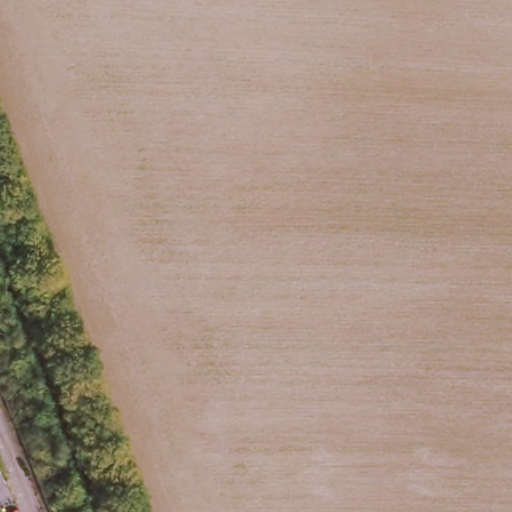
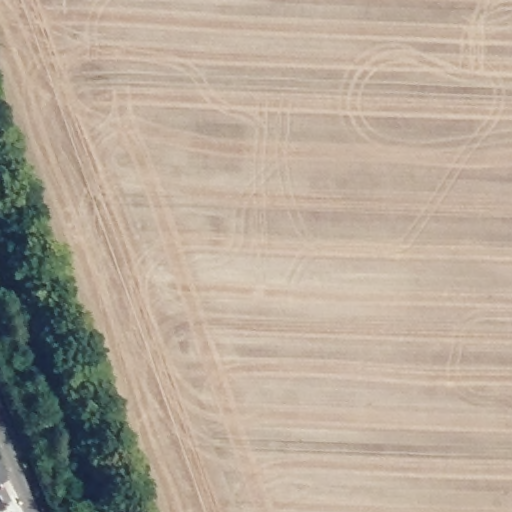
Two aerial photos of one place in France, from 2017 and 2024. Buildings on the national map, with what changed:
unchanged [(6,483),(0,487),(0,471),(6,483)]
unchanged [(2,512),(0,512),(0,507),(2,512)]

